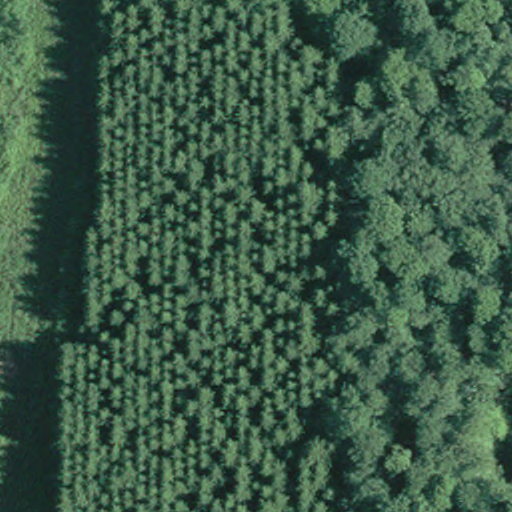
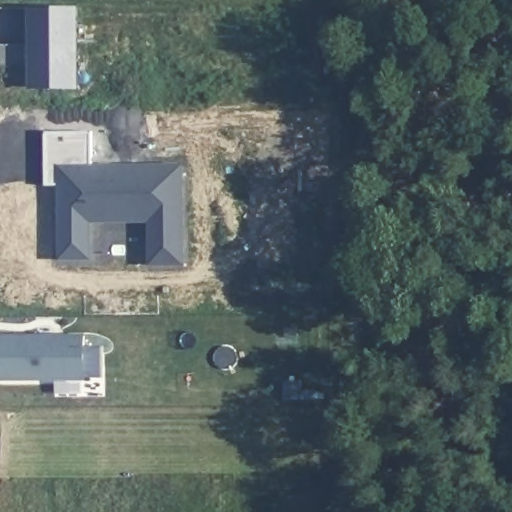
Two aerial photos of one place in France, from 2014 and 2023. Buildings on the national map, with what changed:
new [(75,8),(77,86),(32,86),(32,8),(75,8)]
new [(152,237),(152,215),(89,216),(89,253),(62,254),(60,181),(47,182),(46,165),(45,129),(91,127),(92,163),(130,162),(181,162),(182,172),(182,237),(182,258),(152,258),(152,237)]
new [(84,381),(0,381),(0,335),(84,334),(84,381)]

